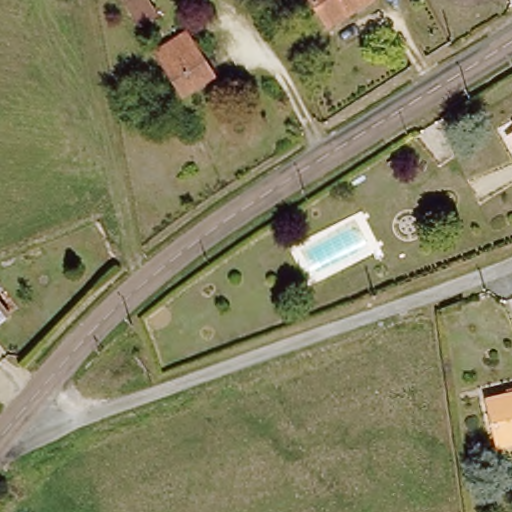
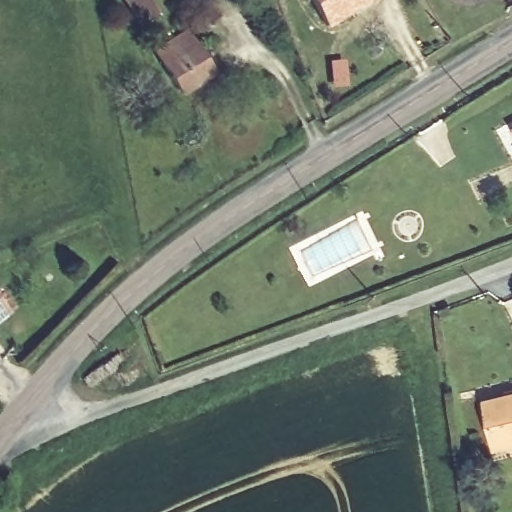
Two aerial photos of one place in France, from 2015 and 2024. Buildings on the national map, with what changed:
unchanged [(381,4),(330,31),(310,0),(378,0),(381,4)]
unchanged [(160,4),(163,21),(142,26),(140,8),(160,4)]
unchanged [(200,40),(210,84),(174,92),(164,47),(200,40)]
unchanged [(10,316),(0,326),(0,306),(10,316)]
unchanged [(512,445),(506,446),(498,402),(512,400),(512,445)]

